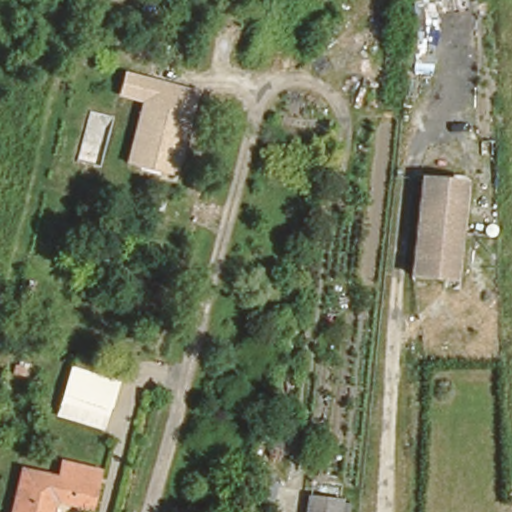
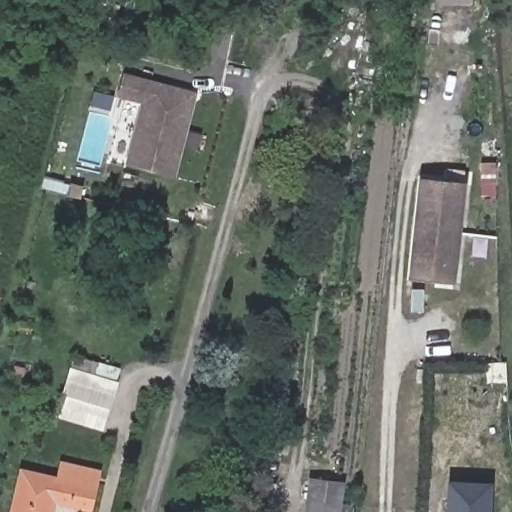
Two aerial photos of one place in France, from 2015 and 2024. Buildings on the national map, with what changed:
unchanged [(199,93),(180,177),(126,167),(140,106),(117,101),(126,73),(199,93)]
unchanged [(464,186),(454,280),(412,276),(422,182),(464,186)]
unchanged [(112,392),(104,418),(56,403),(66,377),(112,392)]
unchanged [(292,431),(284,467),(267,464),(274,428),(292,431)]
unchanged [(61,464),(89,470),(85,486),(96,489),(91,512),(78,512),(55,507),(54,512),(10,512),(19,471),(56,481),(61,464)]
new [(493,482),(491,512),(446,512),(448,480),(493,482)]
unchanged [(307,512),(309,495),(345,499),(343,512),(307,512)]

